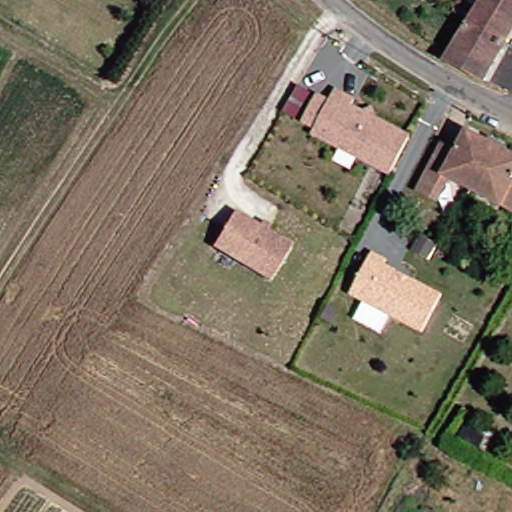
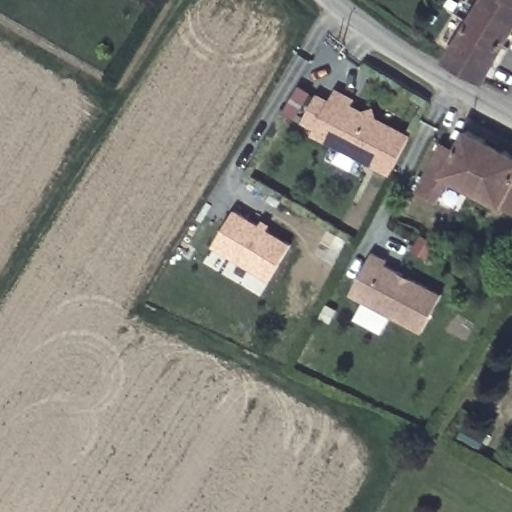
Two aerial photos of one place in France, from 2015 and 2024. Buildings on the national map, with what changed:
unchanged [(449,56),(486,0),(512,0),(512,37),(485,80),(449,56)]
unchanged [(356,93),(353,99),(365,105),(374,102),(377,111),(411,130),(392,166),(314,126),(317,121),(306,114),(320,88),(331,94),(337,83),(356,93)]
unchanged [(456,149),(467,128),(512,150),(512,208),(449,176),(435,199),(416,189),(442,142),(456,149)]
unchanged [(236,208),(292,242),(270,278),(214,243),(236,208)]
unchanged [(385,266),(404,276),(409,279),(442,296),(422,333),(351,295),(373,254),(388,262),(385,266)]

